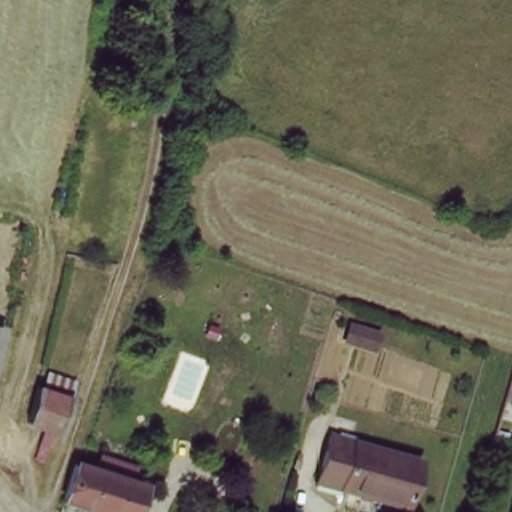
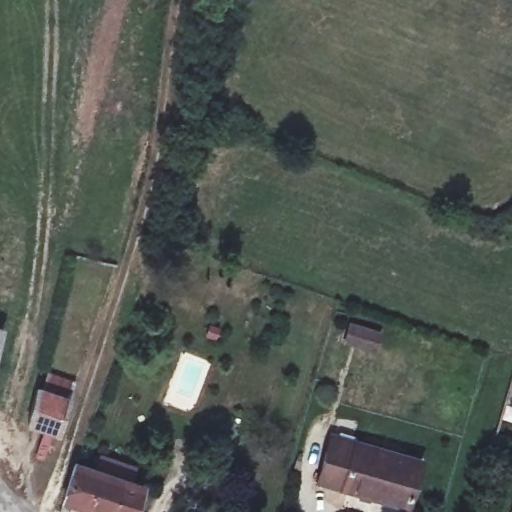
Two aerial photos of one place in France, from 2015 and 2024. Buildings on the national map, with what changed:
unchanged [(327,330),(331,317),(365,328),(362,341),(327,330)]
unchanged [(4,325),(0,341),(0,325),(4,325)]
unchanged [(59,433),(28,422),(37,385),(52,390),(58,373),(76,380),(71,396),(62,424),(59,433)]
unchanged [(425,458),(414,501),(318,476),(328,433),(350,438),(425,458)]
unchanged [(68,500),(79,465),(90,467),(146,484),(144,492),(137,512),(108,512),(68,500)]
unchanged [(510,498),(512,499),(512,512),(506,512),(510,498)]

